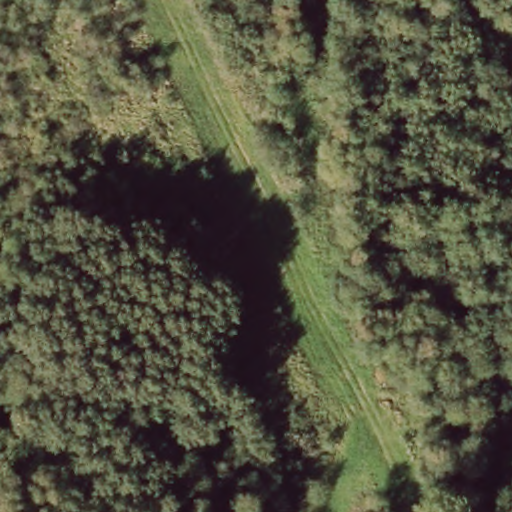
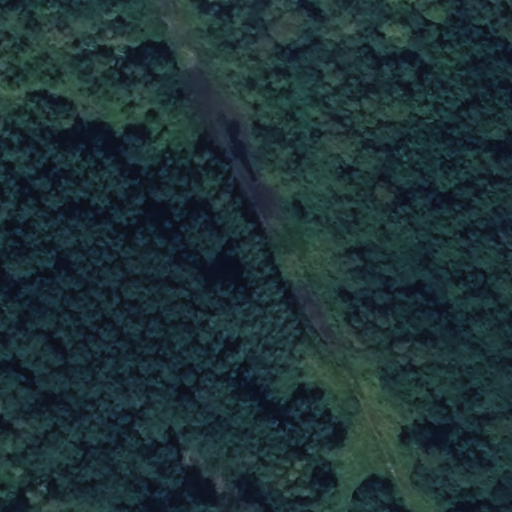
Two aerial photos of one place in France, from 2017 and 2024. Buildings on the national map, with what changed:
unchanged [(334,400),(296,404),(294,367),(331,364),(334,400)]

